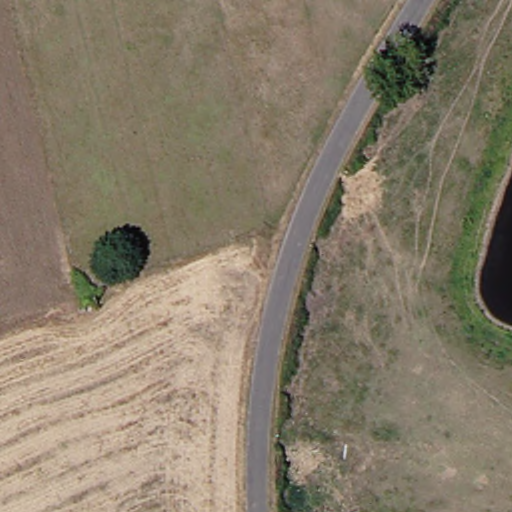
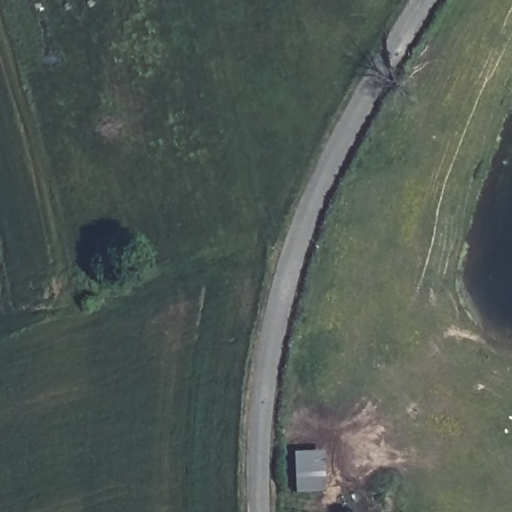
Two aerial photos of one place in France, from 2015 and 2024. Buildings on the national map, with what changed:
new [(291,491),(291,449),(321,449),(323,491),(291,491)]

